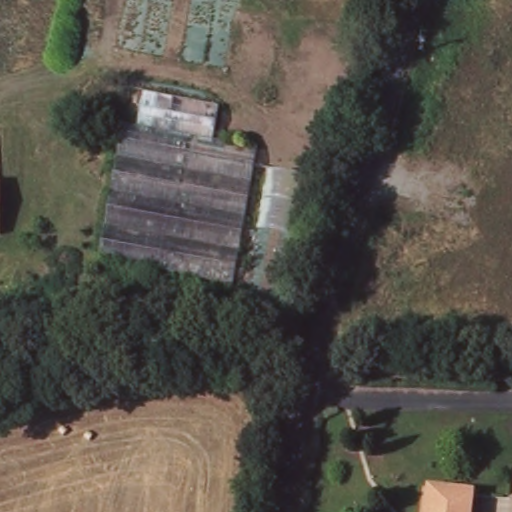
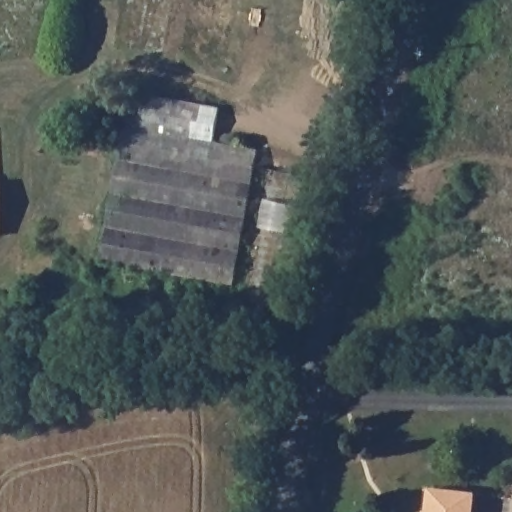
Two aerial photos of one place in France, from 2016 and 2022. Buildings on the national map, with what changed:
unchanged [(233,285),(99,261),(123,125),(138,128),(145,94),(220,108),(213,142),(258,150),(233,285)]
unchanged [(291,329),(246,320),(273,173),(318,182),(291,329)]
unchanged [(271,411),(259,408),(264,387),(276,390),(271,411)]
unchanged [(475,493),(474,512),(429,512),(431,490),(475,493)]

